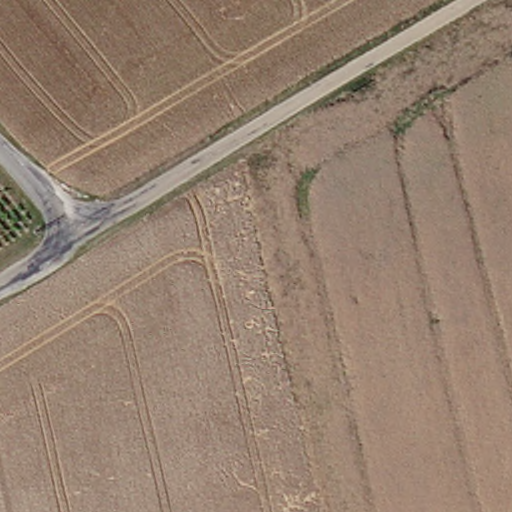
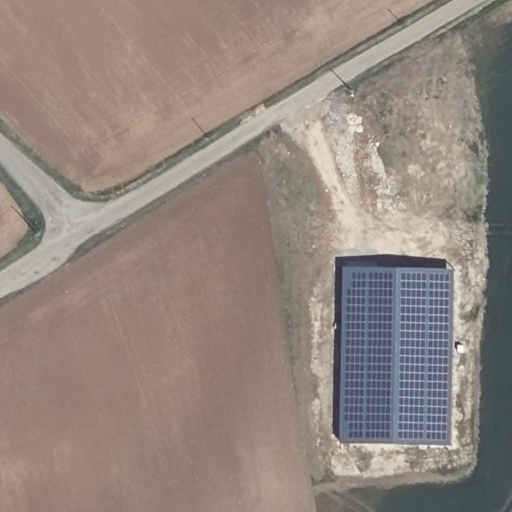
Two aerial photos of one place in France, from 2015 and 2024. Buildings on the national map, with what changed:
new [(450,446),(341,441),(344,270),(453,272),(450,446)]

